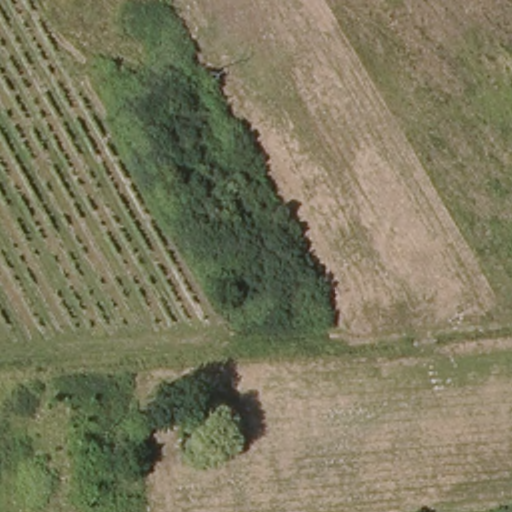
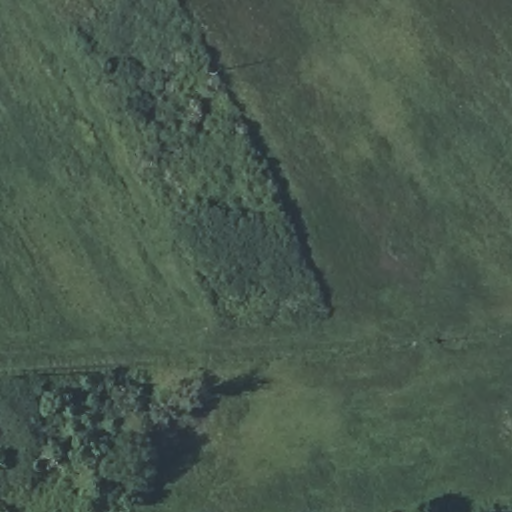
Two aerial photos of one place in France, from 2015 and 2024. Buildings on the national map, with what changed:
[]

